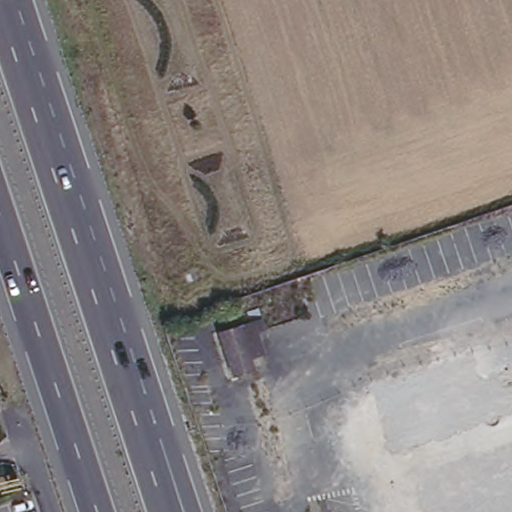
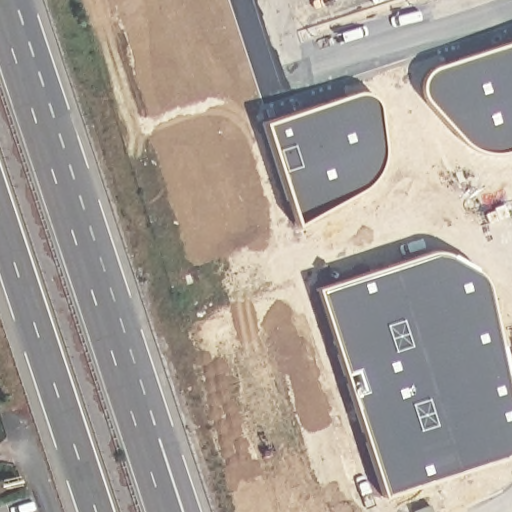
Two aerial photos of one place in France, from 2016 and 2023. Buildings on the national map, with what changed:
new [(511,150),(497,154),(487,152),(472,147),(461,140),(455,134),(424,100),(422,92),(422,81),(425,72),(430,68),(512,40),(512,150),(511,150)]
new [(357,90),(366,93),(371,96),(377,101),(384,149),(383,157),(379,167),(374,178),(365,187),(296,223),(261,123),(357,90)]
new [(433,251),(447,255),(467,265),(481,277),(512,416),(512,445),(506,452),(382,495),(315,288),(433,251)]
demolished [(214,337),(256,324),(259,336),(251,338),(256,352),(251,354),(253,360),(244,363),(248,376),(228,382),(214,337)]
demolished [(398,444),(378,382),(474,351),(482,377),(503,371),(510,391),(489,397),(494,413),(398,444)]
demolished [(493,492),(512,483),(512,512),(503,512),(493,492)]

